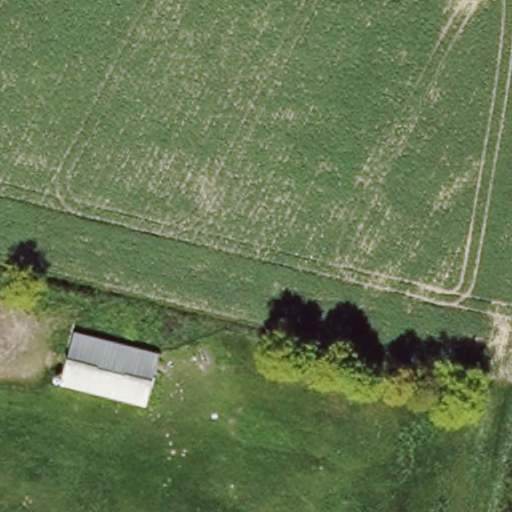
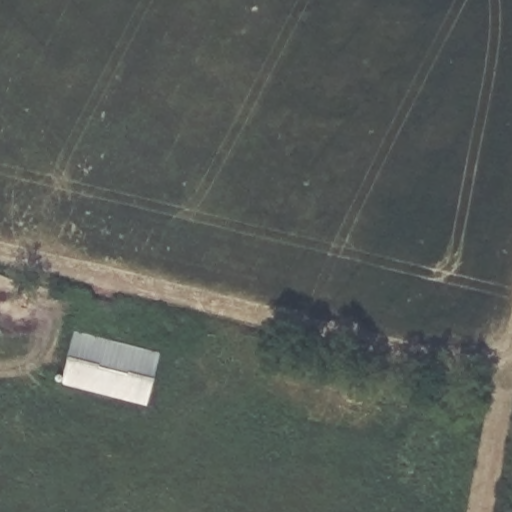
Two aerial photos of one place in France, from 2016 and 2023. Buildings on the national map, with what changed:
unchanged [(156,355),(145,406),(60,384),(72,334),(156,355)]

